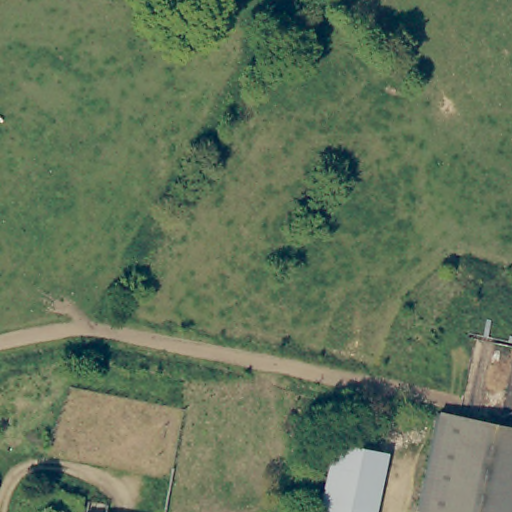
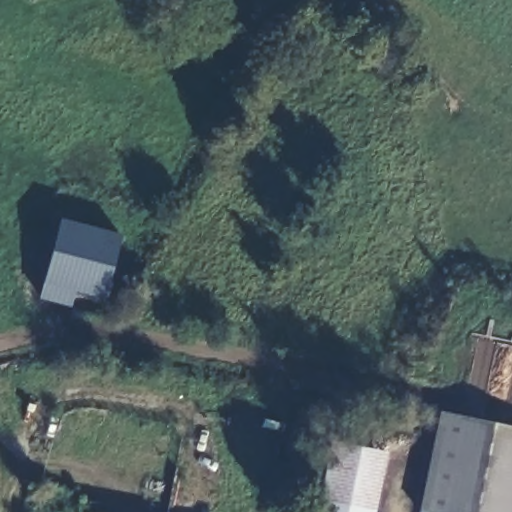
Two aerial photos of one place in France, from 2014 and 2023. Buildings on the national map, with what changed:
new [(106,299),(44,285),(60,220),(121,234),(106,299)]
unchanged [(441,418),(512,432),(512,508),(511,512),(423,512),(441,418)]
unchanged [(329,444),(377,454),(365,512),(315,512),(329,444)]

